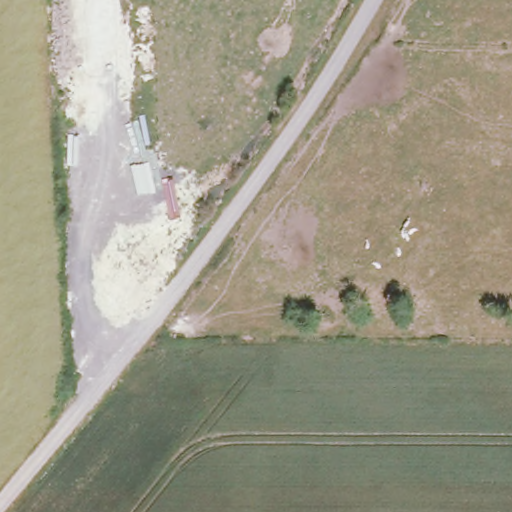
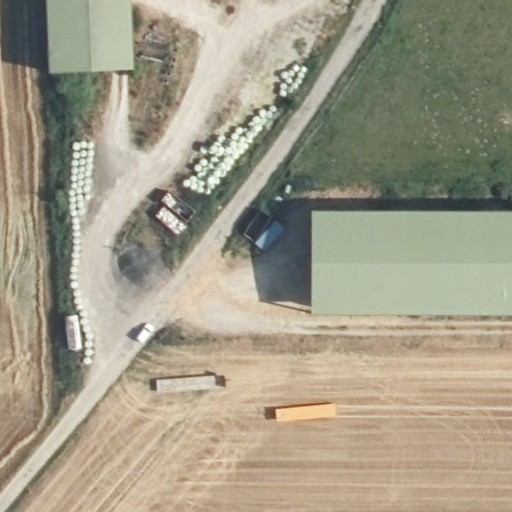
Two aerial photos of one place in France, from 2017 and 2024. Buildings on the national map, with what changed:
new [(52,0),(136,0),(140,65),(55,69),(52,0)]
new [(308,317),(308,212),(512,212),(512,317),(308,317)]

